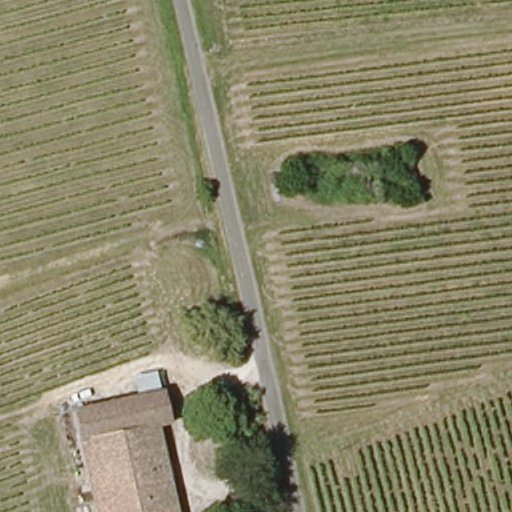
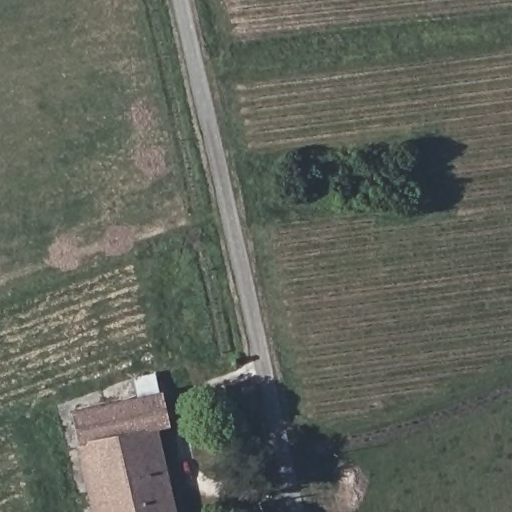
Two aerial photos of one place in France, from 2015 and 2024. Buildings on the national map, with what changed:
unchanged [(159,377),(166,411),(151,415),(170,512),(90,512),(68,397),(159,377)]

